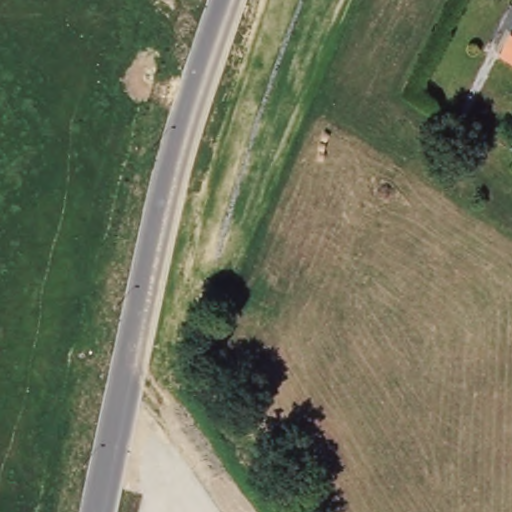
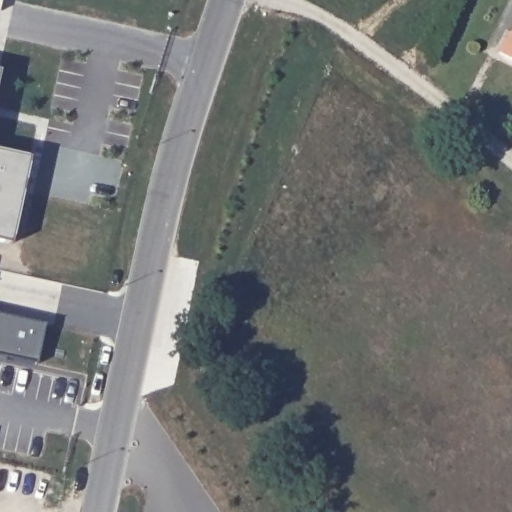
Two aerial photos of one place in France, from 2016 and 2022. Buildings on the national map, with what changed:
unchanged [(512,29),(512,64),(498,57),(512,29)]
new [(30,160),(11,245),(0,242),(0,153),(30,160)]
new [(45,325),(37,365),(0,357),(0,315),(45,325)]

